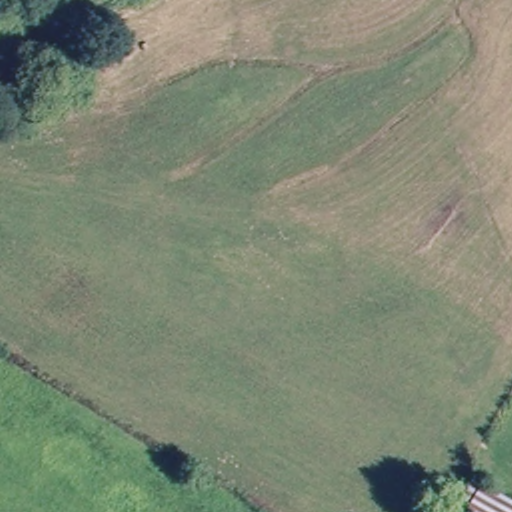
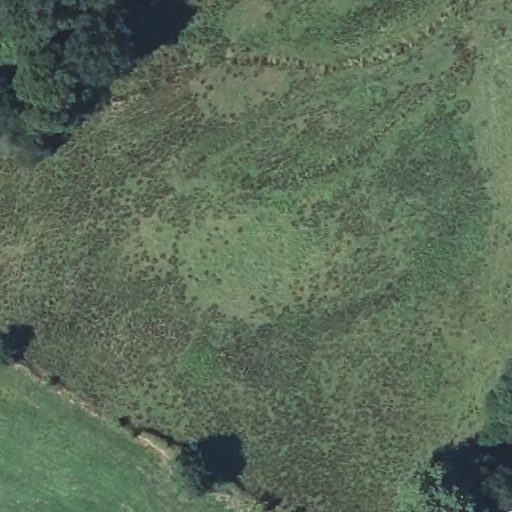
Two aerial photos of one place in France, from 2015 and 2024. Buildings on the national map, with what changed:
unchanged [(512,512),(463,512),(456,508),(470,479),(512,502),(512,512)]

